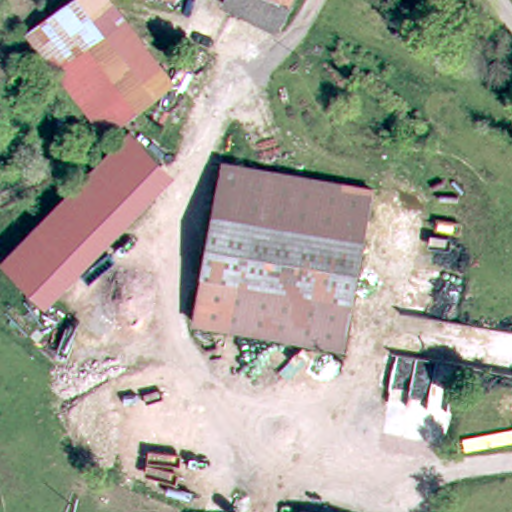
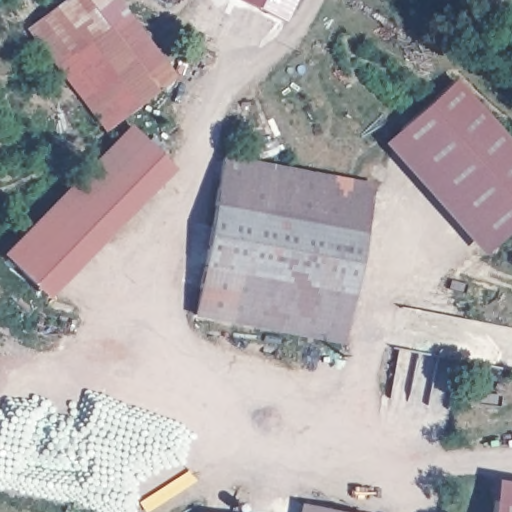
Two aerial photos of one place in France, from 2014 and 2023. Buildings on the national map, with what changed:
unchanged [(40,21),(73,0),(118,0),(175,90),(110,133),(40,21)]
unchanged [(229,0),(293,0),(282,24),(272,19),(229,0)]
new [(512,230),(484,255),(384,143),(455,79),(512,144),(512,230)]
unchanged [(177,169),(49,299),(2,254),(132,126),(177,169)]
unchanged [(377,183),(346,345),(194,316),(225,154),(377,183)]
new [(512,483),(512,512),(492,512),(497,480),(512,483)]
unchanged [(357,512),(294,512),(296,501),(357,512)]

